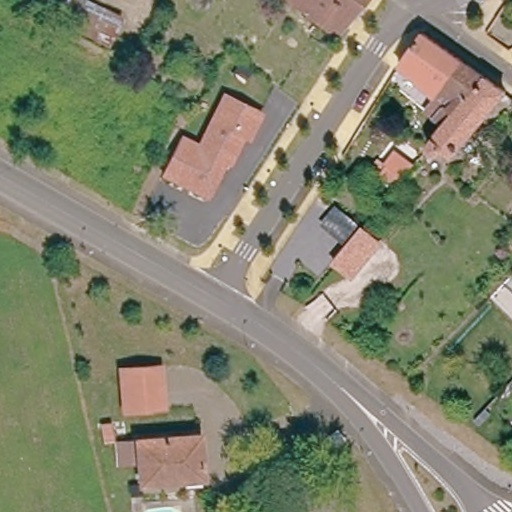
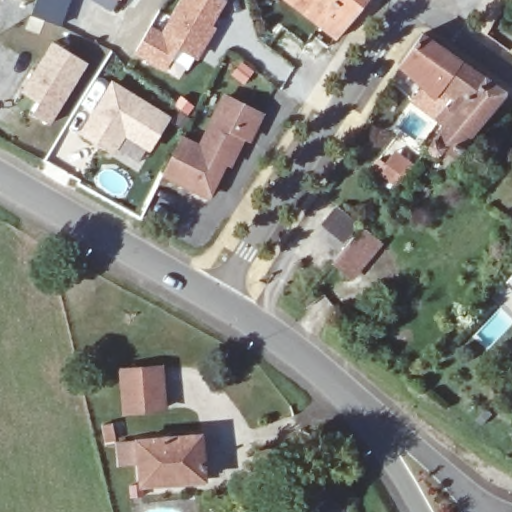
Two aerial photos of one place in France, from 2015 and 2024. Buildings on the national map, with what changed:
unchanged [(29,12),(35,0),(77,0),(70,29),(29,12)]
new [(161,30),(179,0),(228,0),(214,25),(217,26),(180,80),(134,54),(151,25),(161,30)]
unchanged [(347,25),(335,39),(286,0),(368,0),(357,14),(347,25)]
unchanged [(433,148),(433,149),(432,150),(431,150),(429,150),(428,150),(427,149),(426,149),(426,147),(425,147),(425,146),(425,145),(425,144),(425,143),(426,142),(441,124),(421,110),(431,96),(394,64),(418,32),(457,60),(479,77),(499,92),(448,155),(436,145),(433,148)]
new [(89,62),(49,124),(31,113),(40,100),(21,90),(53,40),(89,62)]
new [(170,115),(150,150),(125,135),(114,155),(78,134),(111,79),(170,115)]
unchanged [(264,112),(249,140),(244,137),(231,166),(225,164),(209,196),(159,170),(178,130),(197,140),(222,91),(264,112)]
unchanged [(399,143),(395,148),(412,159),(396,184),(372,162),(389,137),(399,143)]
unchanged [(351,276),(333,260),(359,229),(378,244),(351,276)]
unchanged [(509,240),(512,236),(512,243),(509,240)]
unchanged [(512,274),(512,289),(504,282),(512,274)]
unchanged [(165,362),(169,403),(129,406),(126,366),(165,362)]
unchanged [(346,440),(336,449),(328,439),(338,430),(346,440)]
unchanged [(200,436),(204,479),(141,484),(138,441),(200,436)]

